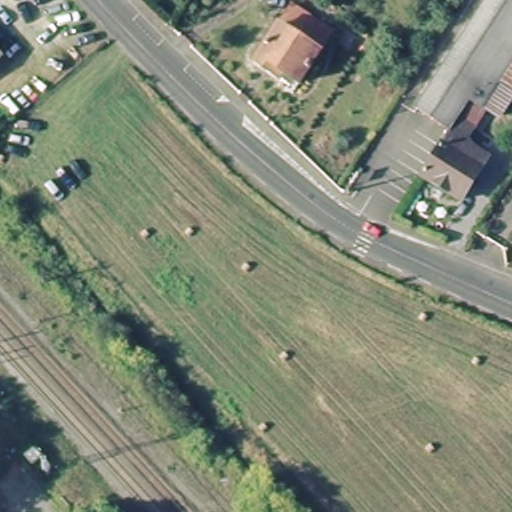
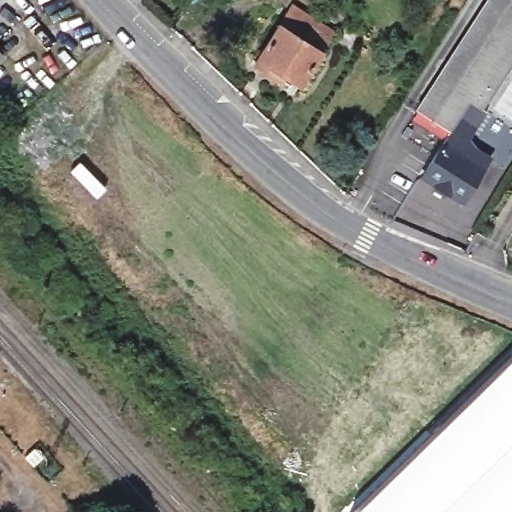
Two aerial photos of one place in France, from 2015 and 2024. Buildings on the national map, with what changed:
unchanged [(456,57),(451,54),(486,0),(512,0),(512,65),(481,113),(468,105),(440,86),(456,57)]
unchanged [(293,91),(254,64),(290,9),(330,36),(293,91)]
unchanged [(0,60),(0,52),(4,56),(0,60)]
unchanged [(449,134),(415,111),(451,54),(456,57),(440,86),(468,105),(457,122),(449,134)]
unchanged [(474,133),(467,142),(471,152),(486,162),(460,205),(419,179),(449,134),(457,122),(474,133)]
new [(512,351),(512,512),(347,512),(512,351)]

